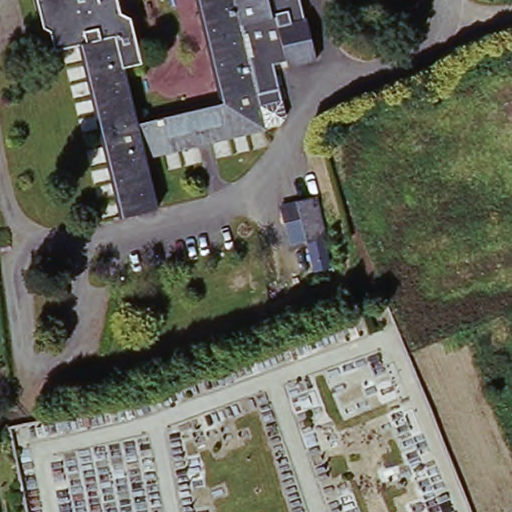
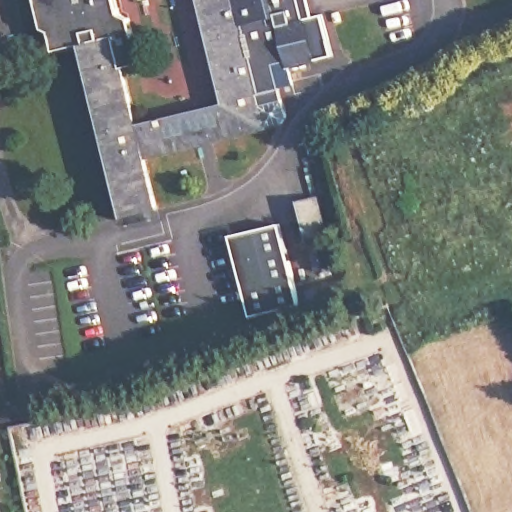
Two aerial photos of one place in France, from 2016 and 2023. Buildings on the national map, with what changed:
unchanged [(281,127),(267,130),(267,133),(149,161),(161,215),(125,224),(83,49),(59,56),(54,36),(46,31),(39,0),(120,0),(124,18),(135,24),(144,67),(128,72),(140,125),(224,106),(199,0),(298,0),(303,22),(306,22),(315,64),(288,71),(286,66),(274,69),(279,92),(282,106),(285,122),(281,127)]
demolished [(306,242),(301,220),(285,223),(282,205),(296,203),(296,200),(315,196),(325,237),(306,242)]
new [(333,269),(313,274),(295,200),(317,196),(333,269)]
new [(298,306),(249,317),(229,236),(278,224),(298,306)]

